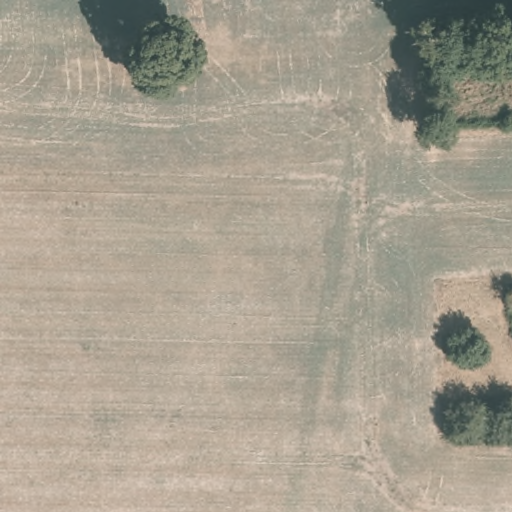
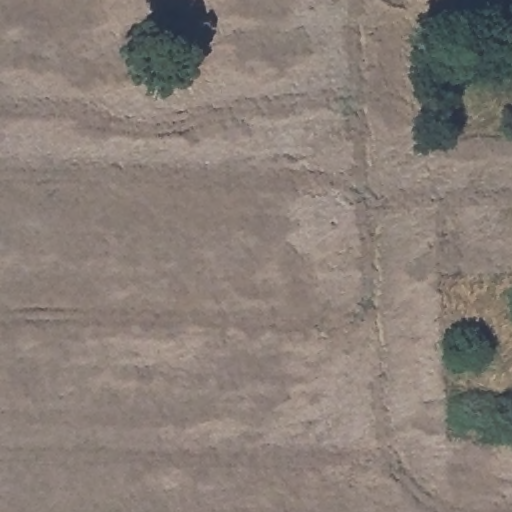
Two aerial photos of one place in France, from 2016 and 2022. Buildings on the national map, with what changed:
[]

